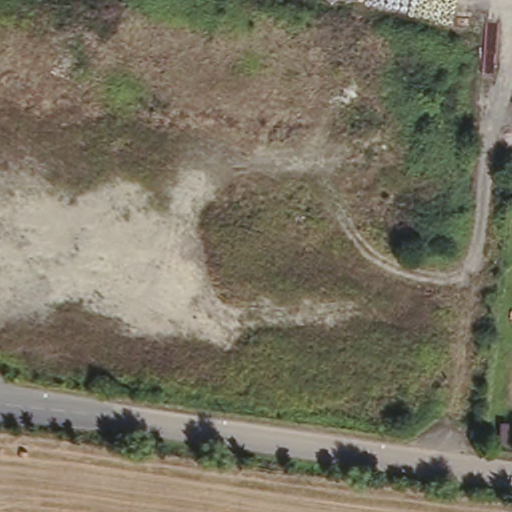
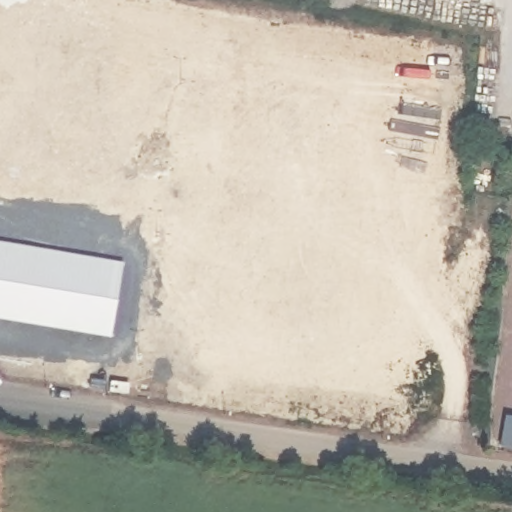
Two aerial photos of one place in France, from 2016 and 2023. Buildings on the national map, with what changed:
new [(113,335),(0,317),(0,242),(125,262),(113,335)]
new [(505,419),(512,420),(512,444),(501,443),(505,419)]

